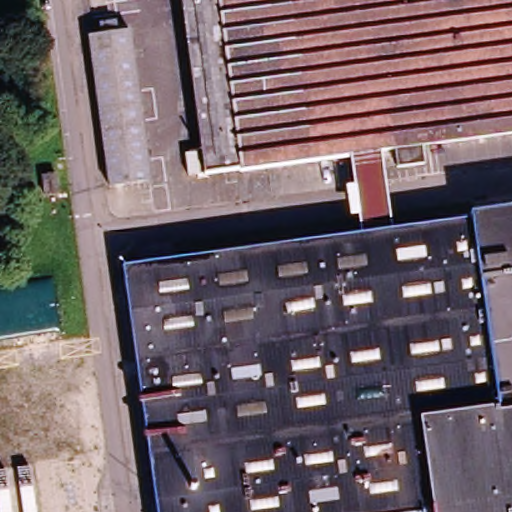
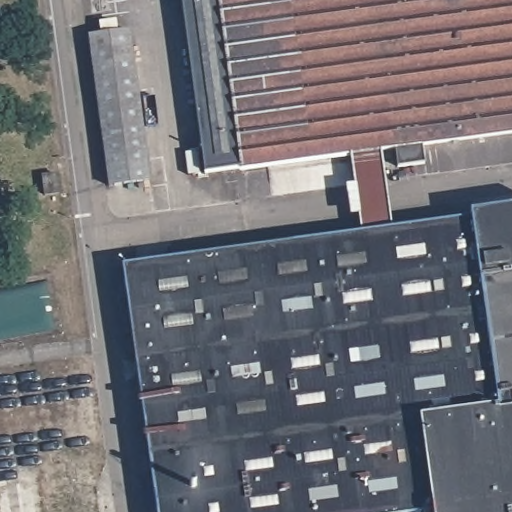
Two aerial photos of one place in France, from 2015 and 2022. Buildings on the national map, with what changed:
unchanged [(428,161),(401,165),(398,144),(377,147),(346,151),(206,171),(181,0),(512,0),(512,131),(426,143),(428,161)]
unchanged [(147,179),(107,185),(85,36),(125,30),(147,179)]
unchanged [(358,235),(346,151),(377,147),(389,231),(358,235)]
unchanged [(133,268),(358,235),(389,231),(512,213),(512,512),(169,512),(133,268)]

